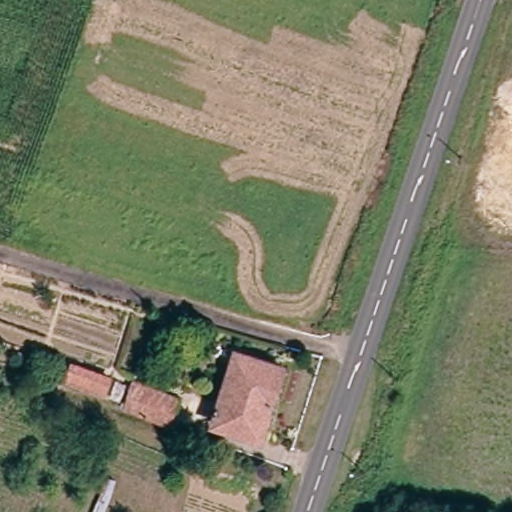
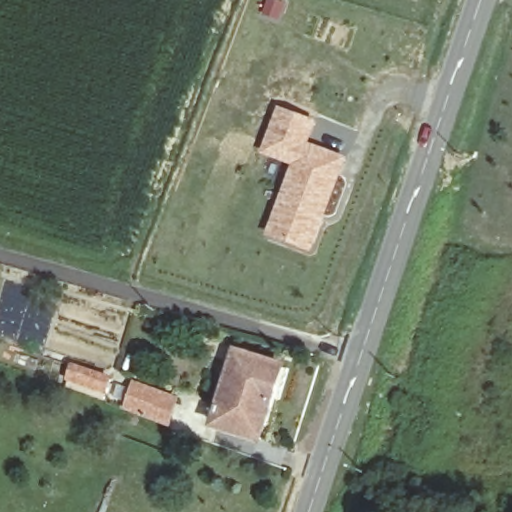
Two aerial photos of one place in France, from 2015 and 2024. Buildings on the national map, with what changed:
new [(277,105),(317,120),(309,142),(349,157),(312,254),(264,237),(290,166),(259,154),(277,105)]
unchanged [(282,367),(260,442),(214,427),(235,355),(282,367)]
unchanged [(103,383),(99,398),(63,387),(68,372),(103,383)]
unchanged [(126,412),(138,383),(183,399),(174,427),(126,412)]

